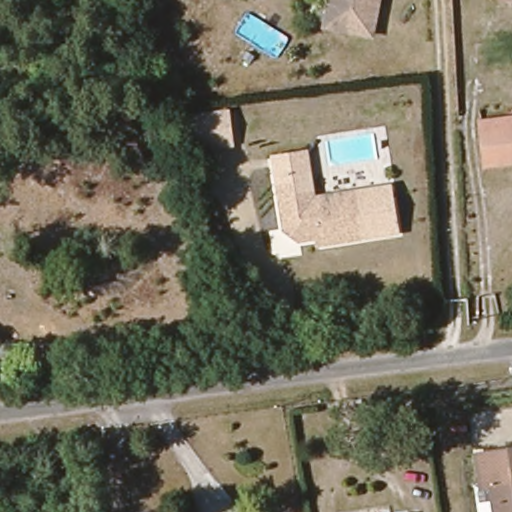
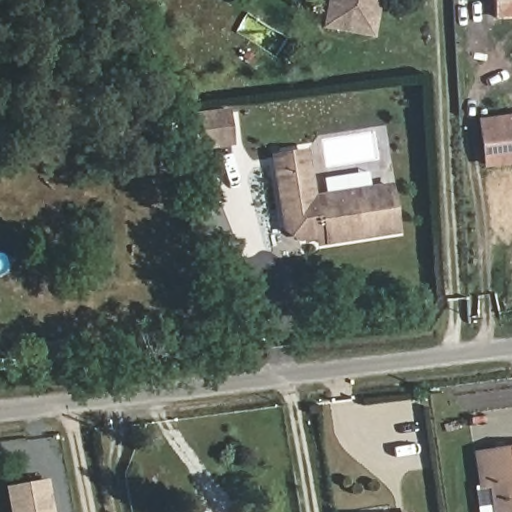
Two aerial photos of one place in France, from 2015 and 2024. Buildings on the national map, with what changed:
unchanged [(321,29),(325,0),(379,0),(372,38),(321,29)]
unchanged [(234,145),(196,151),(190,111),(230,109),(234,145)]
unchanged [(512,123),(512,163),(494,165),(488,127),(512,123)]
unchanged [(268,187),(264,154),(304,148),(310,180),(268,187)]
unchanged [(357,236),(295,241),(282,226),(278,207),(271,209),(268,187),(310,180),(312,194),(350,190),(357,236)]
unchanged [(388,182),(393,229),(357,236),(350,190),(388,182)]
unchanged [(44,359),(40,333),(73,330),(75,358),(44,359)]
unchanged [(482,485),(480,453),(512,451),(512,483),(496,484),(482,485)]
new [(43,480),(48,512),(9,512),(5,487),(43,480)]
unchanged [(512,483),(512,512),(498,512),(496,484),(512,483)]

